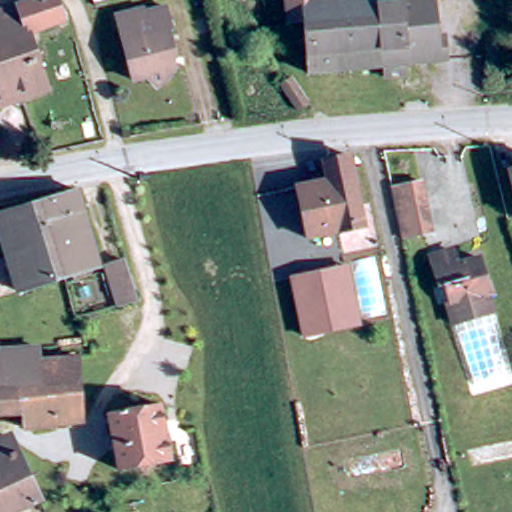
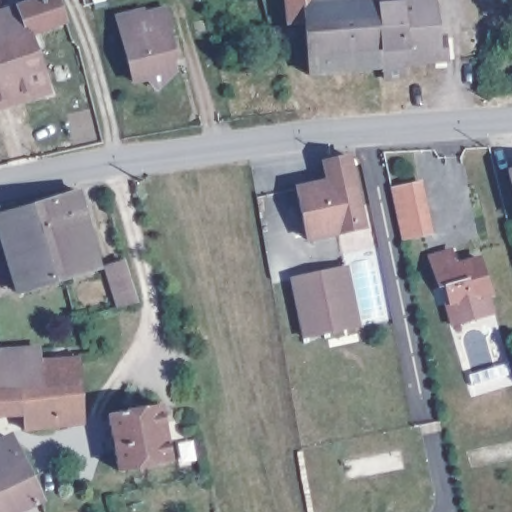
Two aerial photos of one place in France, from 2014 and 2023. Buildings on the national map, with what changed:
unchanged [(30,33),(22,9),(50,0),(67,0),(70,23),(30,33)]
unchanged [(374,0),(375,20),(360,21),(307,26),(289,28),(286,0),(374,0)]
unchanged [(381,70),(312,76),(307,26),(360,21),(375,20),(374,0),(404,0),(409,68),(402,68),(402,81),(382,83),(381,70)]
unchanged [(442,65),(409,68),(404,0),(436,0),(440,48),(447,49),(448,63),(442,65)]
unchanged [(22,9),(30,33),(0,43),(0,15),(22,9)]
unchanged [(169,29),(165,35),(172,59),(167,61),(172,77),(155,88),(149,78),(135,81),(125,43),(119,18),(142,11),(144,15),(160,11),(169,29)]
unchanged [(33,44),(50,93),(22,101),(0,108),(0,43),(30,33),(33,44)]
unchanged [(282,84),(291,78),(308,104),(299,110),(282,84)]
unchanged [(333,184),(329,165),(351,160),(353,160),(369,231),(343,236),(343,234),(333,184)]
unchanged [(512,172),(512,187),(508,173),(512,172)]
unchanged [(434,233),(404,239),(394,195),(392,188),(422,181),(434,233)]
unchanged [(313,240),(302,190),(333,184),(343,234),(313,240)]
unchanged [(86,197),(107,272),(71,282),(47,208),(86,197)]
unchanged [(71,282),(25,296),(14,260),(2,221),(24,215),(47,208),(71,282)]
unchanged [(450,329),(444,308),(449,307),(444,289),(437,291),(428,262),(450,255),(455,268),(478,262),(488,295),(483,297),(490,318),(450,329)]
unchanged [(356,303),(360,320),(337,325),(339,329),(307,336),(295,278),(297,277),(327,271),(332,300),(355,296),(356,303)]
unchanged [(128,287),(139,282),(146,306),(135,309),(128,287)]
unchanged [(30,428),(28,410),(0,414),(0,387),(10,385),(22,384),(19,351),(44,349),(46,362),(54,361),(84,357),(87,383),(91,421),(30,428)]
unchanged [(9,360),(10,385),(0,387),(0,361),(9,360)]
unchanged [(113,415),(165,407),(173,464),(121,471),(113,415)]
unchanged [(15,434),(21,439),(29,454),(49,500),(21,512),(0,512),(0,441),(15,434)]

